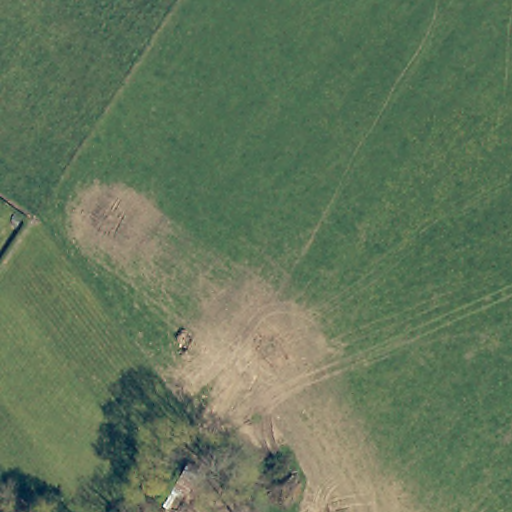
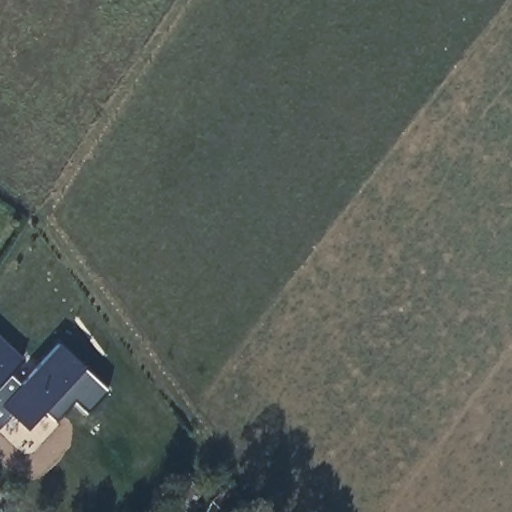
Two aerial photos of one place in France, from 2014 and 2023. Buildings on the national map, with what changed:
new [(73,401),(54,420),(44,410),(27,430),(10,415),(0,427),(0,336),(22,357),(7,373),(20,385),(59,340),(106,390),(87,413),(73,401)]

